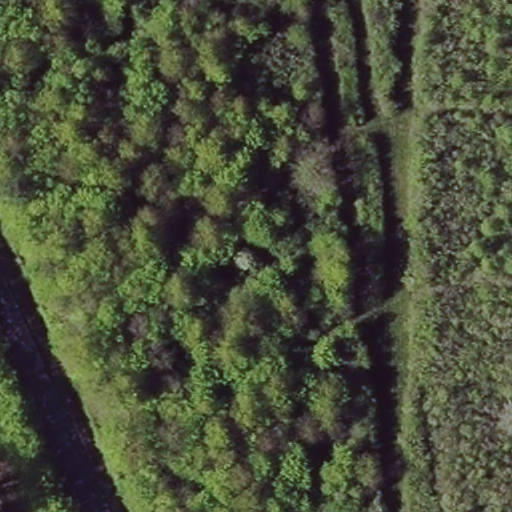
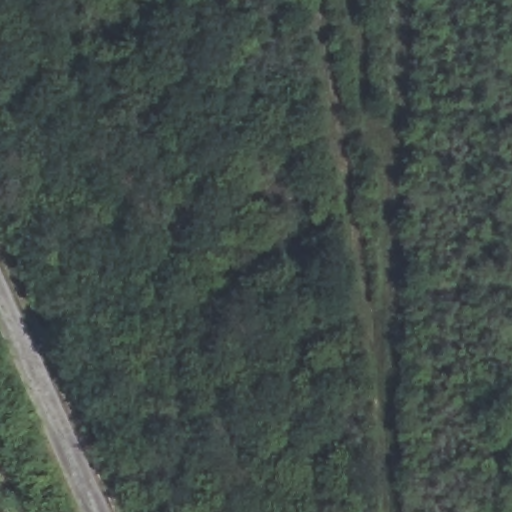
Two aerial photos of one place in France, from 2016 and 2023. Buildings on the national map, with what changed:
[]

